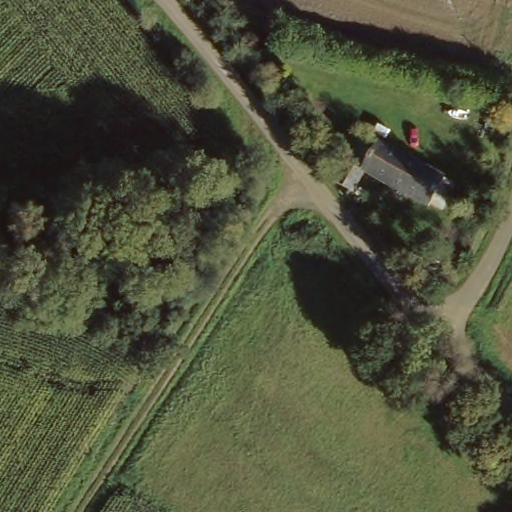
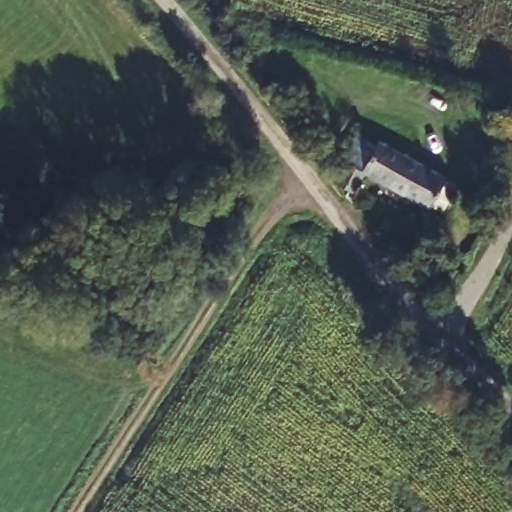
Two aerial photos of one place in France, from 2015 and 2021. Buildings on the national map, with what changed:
unchanged [(456,215),(436,204),(374,171),(365,186),(371,189),(368,192),(363,203),(353,197),(359,187),(339,178),(344,167),(368,127),(456,174),(475,184),(456,215)]

